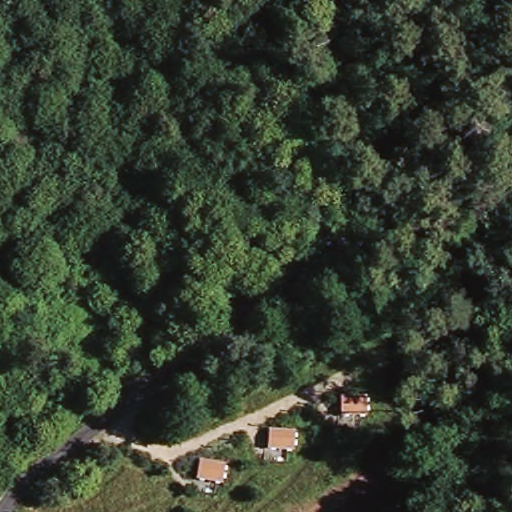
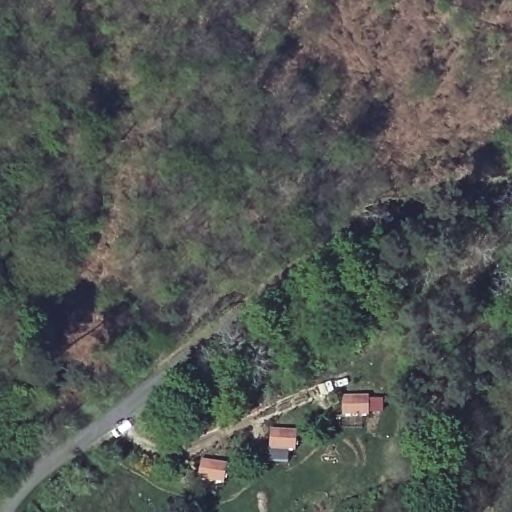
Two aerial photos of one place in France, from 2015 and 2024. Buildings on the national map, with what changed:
unchanged [(342,395),(368,395),(368,414),(342,413),(342,395)]
unchanged [(270,430),(297,432),(295,452),(267,448),(270,430)]
unchanged [(202,460),(227,463),(224,483),(200,480),(202,460)]

